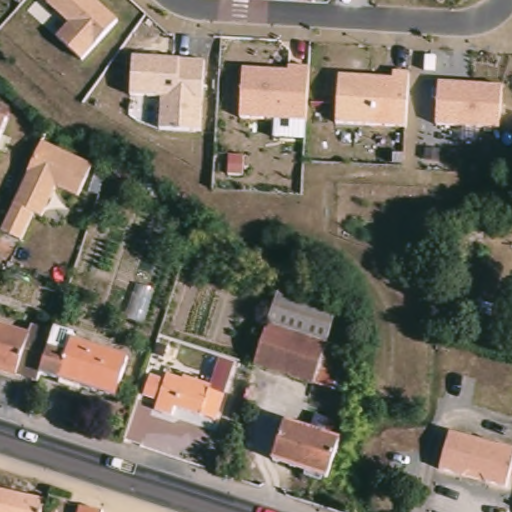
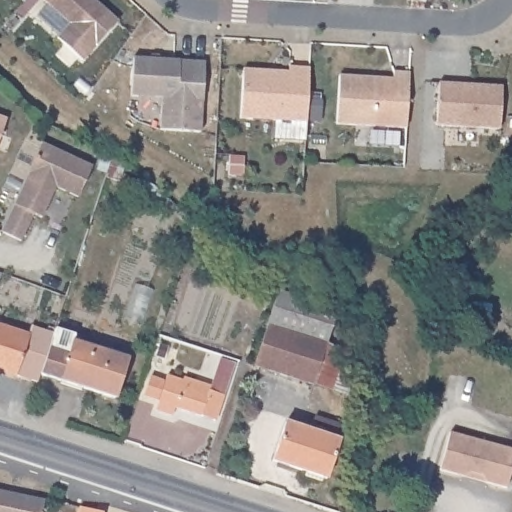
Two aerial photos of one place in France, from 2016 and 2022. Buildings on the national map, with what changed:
unchanged [(82,61),(55,37),(67,24),(42,0),(96,0),(118,20),(82,61)]
unchanged [(205,60),(200,132),(159,130),(161,99),(129,96),(132,55),(205,60)]
unchanged [(287,65),(308,67),(306,122),(239,119),(241,67),(287,70),(287,65)]
unchanged [(393,71),(409,72),(405,128),(336,125),(338,74),(392,77),(393,71)]
unchanged [(498,130),(435,125),(438,81),(502,85),(498,130)]
unchanged [(7,119),(0,142),(0,116),(7,119)]
unchanged [(77,198),(55,188),(42,219),(32,215),(21,240),(0,231),(0,229),(42,141),(92,164),(77,198)]
unchanged [(276,294),(333,312),(327,336),(347,341),(341,368),(354,375),(347,397),(315,388),(326,346),(268,327),(276,294)]
unchanged [(44,340),(33,379),(5,370),(4,373),(0,372),(0,327),(44,340)]
unchanged [(326,346),(315,388),(255,369),(267,332),(268,327),(326,346)]
unchanged [(90,345),(89,349),(144,366),(131,406),(57,383),(61,373),(72,338),(90,345)]
unchanged [(181,383),(183,375),(209,383),(206,391),(224,395),(214,424),(156,405),(165,378),(181,383)]
unchanged [(167,411),(159,432),(146,427),(154,406),(167,411)]
unchanged [(341,440),(328,480),(276,462),(290,422),(341,440)]
unchanged [(512,471),(506,490),(442,470),(452,435),(512,452),(512,471)]
unchanged [(50,505),(48,512),(0,512),(0,496),(50,505)]
unchanged [(88,512),(82,512),(82,510),(88,512)]

